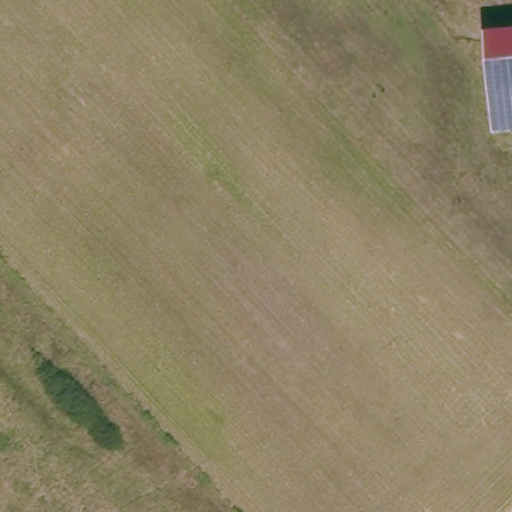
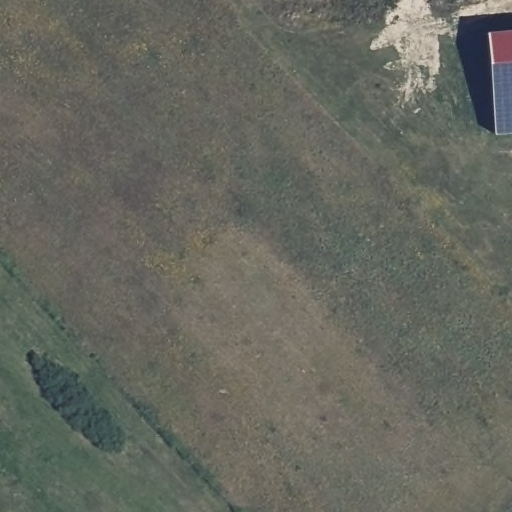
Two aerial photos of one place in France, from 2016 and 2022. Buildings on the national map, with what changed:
unchanged [(489,33),(512,31),(512,134),(496,135),(489,33)]

